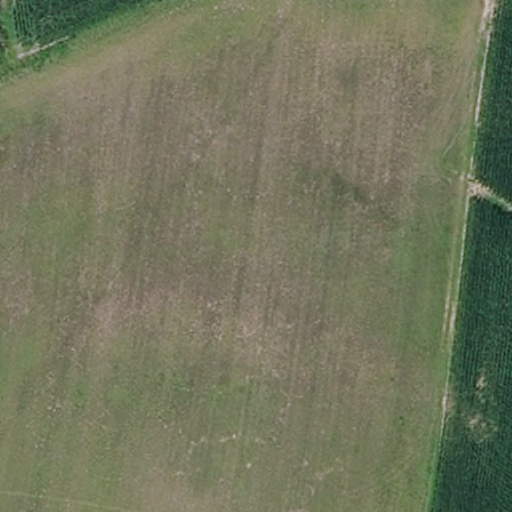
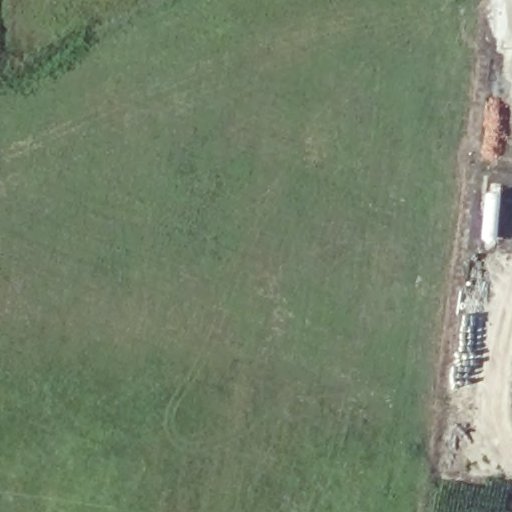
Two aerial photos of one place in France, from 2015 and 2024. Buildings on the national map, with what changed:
[]

